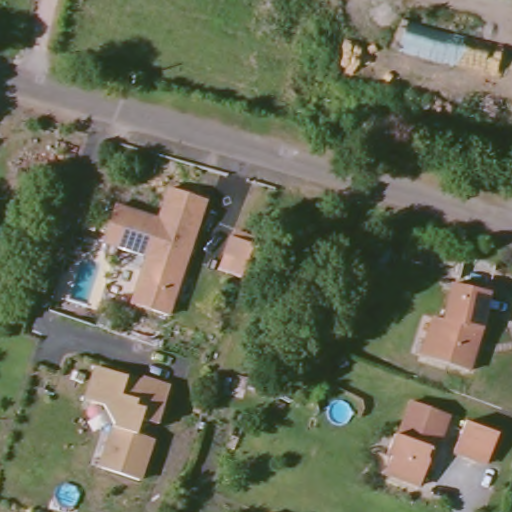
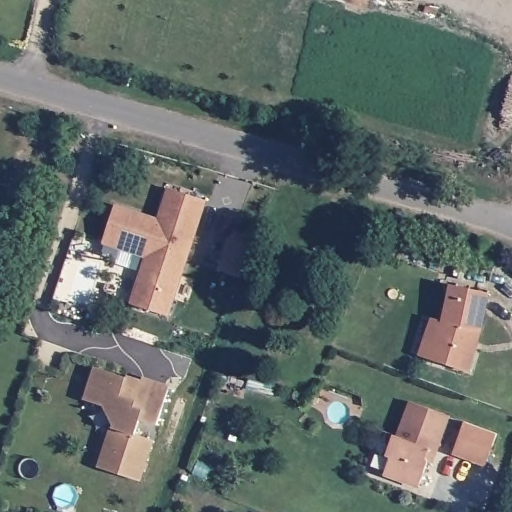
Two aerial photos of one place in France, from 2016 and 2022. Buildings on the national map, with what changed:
unchanged [(141,255),(98,240),(110,204),(154,219),(164,188),(200,199),(163,313),(131,303),(127,302),(141,255)]
unchanged [(218,263),(225,244),(246,251),(247,251),(235,284),(222,279),(213,276),(218,263)]
unchanged [(431,317),(438,319),(442,319),(452,284),(488,293),(466,371),(425,357),(419,355),(431,317)]
unchanged [(102,380),(107,382),(112,370),(130,377),(127,384),(141,390),(145,379),(172,390),(157,427),(140,420),(135,434),(152,442),(149,447),(136,482),(96,466),(109,436),(113,424),(105,404),(95,399),(102,380)]
unchanged [(447,412),(435,447),(427,444),(424,452),(427,459),(417,485),(381,472),(387,455),(383,454),(391,432),(396,433),(409,399),(447,412)]
unchanged [(465,423),(491,433),(479,464),(452,454),(465,423)]

